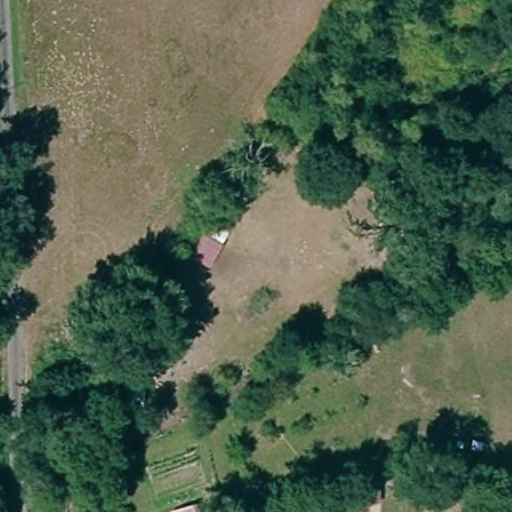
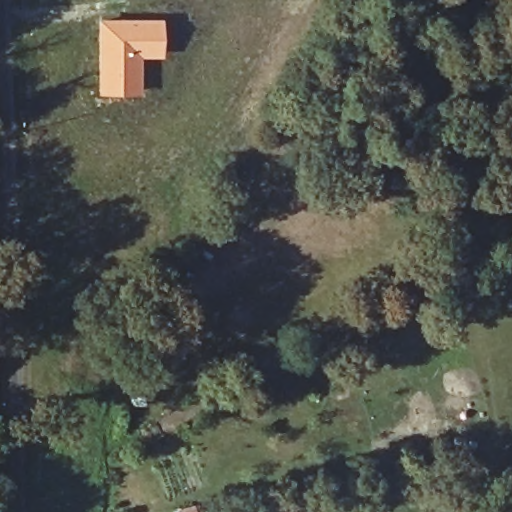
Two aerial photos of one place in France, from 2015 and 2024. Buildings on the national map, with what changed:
new [(161,17),(161,57),(140,57),(137,96),(97,95),(96,17),(161,17)]
unchanged [(380,483),(399,482),(398,496),(380,497),(380,483)]

